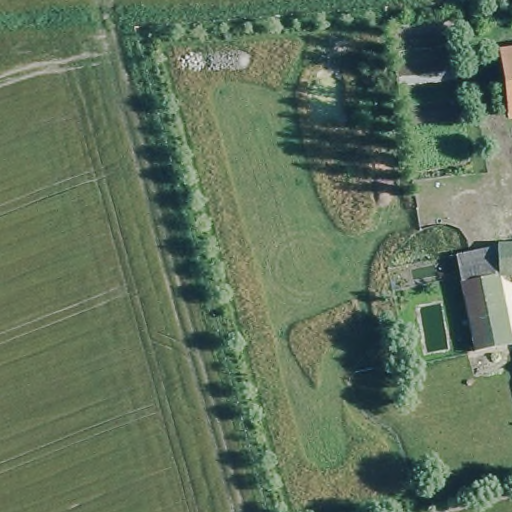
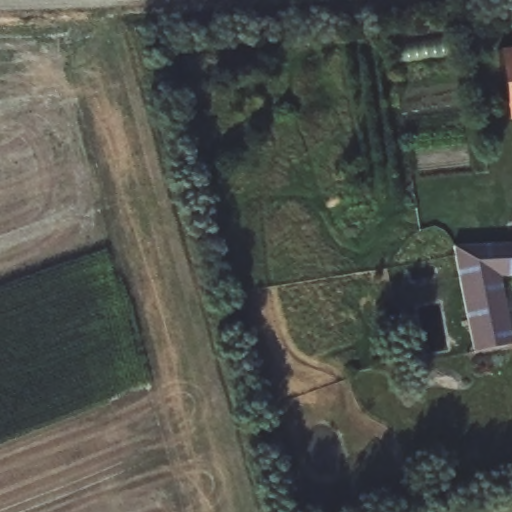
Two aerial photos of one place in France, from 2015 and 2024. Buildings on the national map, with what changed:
unchanged [(512,63),(512,105),(502,107),(495,66),(512,63)]
unchanged [(498,248),(512,247),(512,277),(500,278),(512,336),(512,346),(500,348),(474,354),(465,304),(461,286),(456,258),(498,252),(498,248)]

